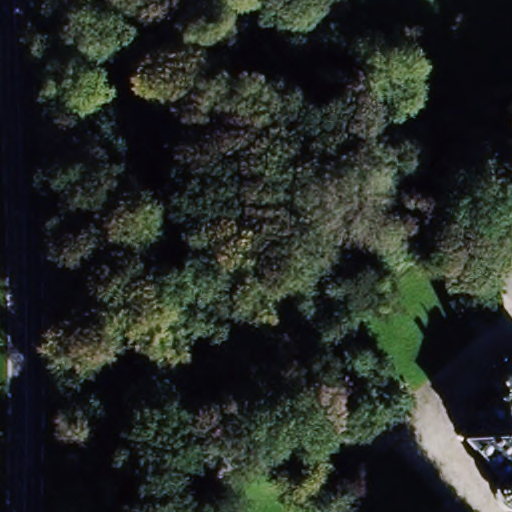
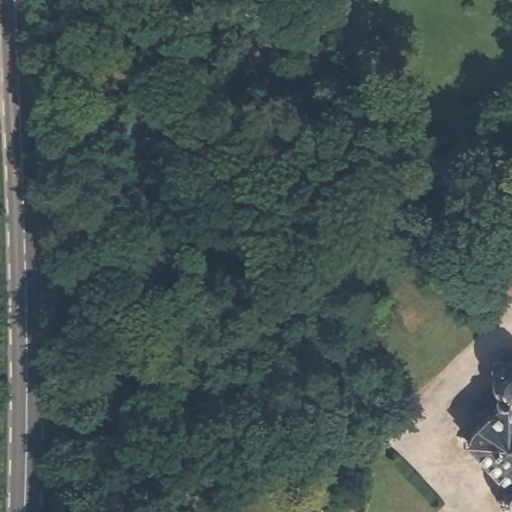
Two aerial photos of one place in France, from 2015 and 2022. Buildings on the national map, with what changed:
unchanged [(147,97),(168,269),(146,271),(125,100),(147,97)]
unchanged [(476,182),(512,152),(512,202),(500,212),(476,182)]
unchanged [(487,212),(473,223),(459,206),(473,194),(487,212)]
unchanged [(495,393),(494,385),(497,374),(504,366),(512,361),(512,411),(508,410),(498,400),(495,393)]
unchanged [(471,416),(481,407),(486,410),(498,400),(508,410),(512,411),(512,512),(503,512),(501,511),(496,502),(493,489),(500,473),(463,436),(476,425),(471,416)]

